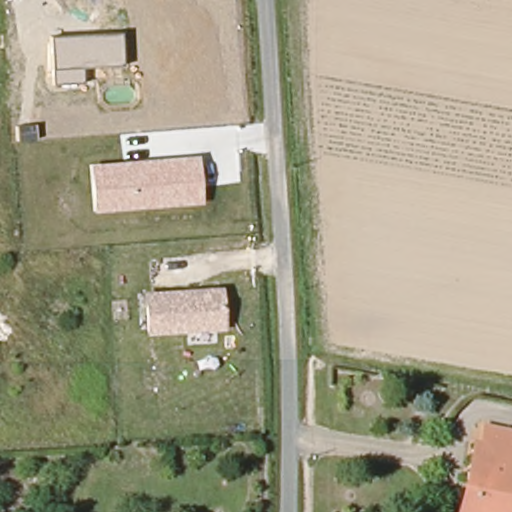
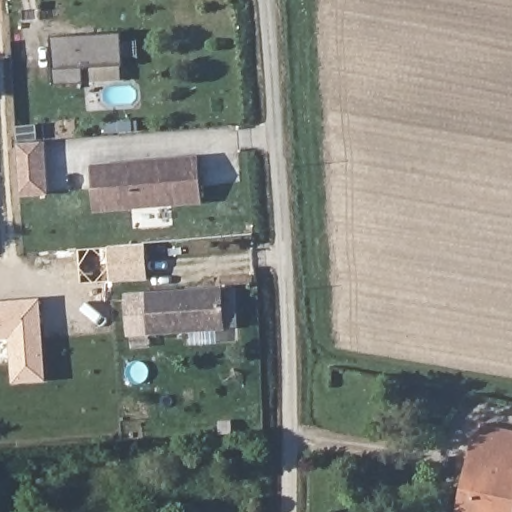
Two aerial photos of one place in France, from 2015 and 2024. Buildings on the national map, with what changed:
unchanged [(83,82),(54,84),(53,68),(51,36),(121,32),(124,64),(83,67),(83,82)]
new [(37,124),(38,139),(18,140),(17,126),(37,124)]
new [(42,141),(45,191),(19,192),(17,143),(42,141)]
unchanged [(94,211),(90,164),(200,155),(203,203),(94,211)]
new [(112,281),(110,246),(146,243),(149,279),(112,281)]
unchanged [(147,334),(145,292),(223,286),(226,329),(147,334)]
new [(0,339),(0,301),(40,298),(46,381),(13,383),(10,338),(0,339)]
unchanged [(479,446),(488,448),(492,433),(512,439),(512,512),(462,512),(470,483),(479,446)]

